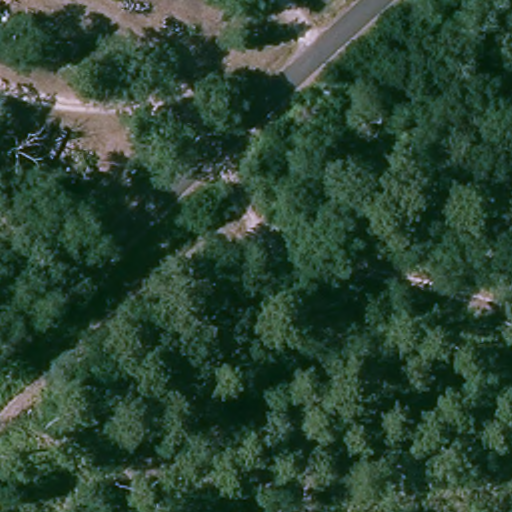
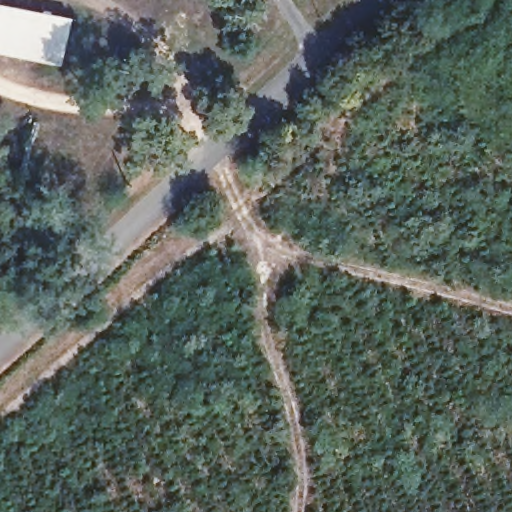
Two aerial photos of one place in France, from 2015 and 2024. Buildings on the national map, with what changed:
new [(0,54),(0,4),(69,18),(60,65),(0,54)]

